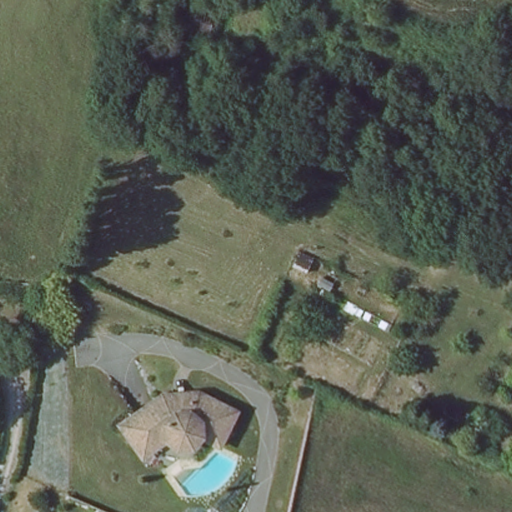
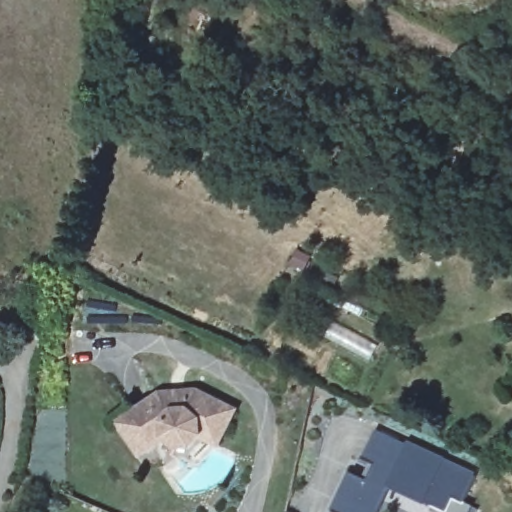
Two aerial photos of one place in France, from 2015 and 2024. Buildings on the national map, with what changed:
unchanged [(221,0),(212,40),(188,35),(195,0),(221,0)]
unchanged [(119,415),(134,408),(164,393),(171,399),(193,402),(199,395),(234,422),(211,451),(200,442),(195,441),(187,448),(173,446),(167,440),(161,436),(150,441),(136,448),(119,415)]
new [(406,445),(407,442),(476,473),(462,504),(452,500),(446,512),(443,512),(423,503),(422,506),(388,490),(377,512),(333,512),(332,512),(349,474),(362,481),(369,464),(361,460),(374,430),(406,445)]

